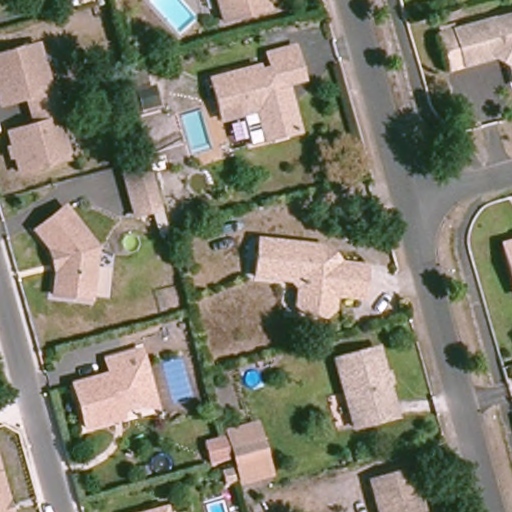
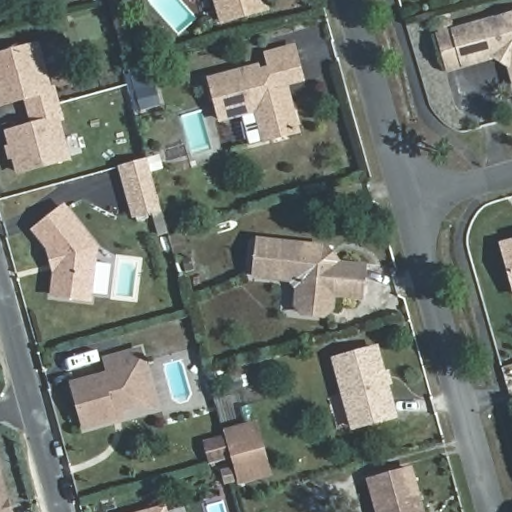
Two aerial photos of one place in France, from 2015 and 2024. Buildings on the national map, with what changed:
unchanged [(263,12),(258,14),(226,22),(219,0),(266,0),(267,5),(269,11),(263,12)]
unchanged [(499,56),(489,58),(486,63),(484,64),(479,61),(464,65),(448,70),(438,35),(454,31),(512,16),(512,79),(507,60),(504,66),(496,60),(499,56)]
unchanged [(36,47),(48,92),(52,90),(61,120),(57,121),(68,160),(18,175),(7,135),(33,127),(26,100),(0,106),(0,57),(36,47)]
unchanged [(297,133),(262,142),(254,113),(221,122),(210,84),(256,72),(257,76),(269,73),(265,59),(291,51),(300,82),(284,87),(289,106),(297,133)]
unchanged [(159,110),(144,115),(138,95),(154,91),(159,110)]
unchanged [(148,156),(161,206),(136,213),(122,163),(148,156)]
unchanged [(33,231),(61,209),(93,250),(87,301),(51,297),(54,271),(49,252),(33,231)]
unchanged [(362,300),(335,297),(333,310),(324,317),(304,315),(297,306),(299,290),(292,280),(255,276),(259,241),(323,247),(322,255),(329,263),(365,267),(362,300)]
unchanged [(505,257),(503,251),(512,249),(512,283),(505,257)]
unchanged [(395,417),(354,429),(335,361),(377,350),(395,417)]
unchanged [(110,422),(80,431),(68,388),(105,377),(101,363),(135,353),(140,368),(152,410),(110,422)]
unchanged [(201,443),(224,436),(222,430),(257,421),(273,478),(238,487),(230,460),(209,466),(201,443)]
unchanged [(372,483),(411,472),(421,512),(379,512),(372,483)]
unchanged [(8,512),(0,512),(0,484),(8,512)]
unchanged [(166,511),(166,512),(164,512),(166,511)]

